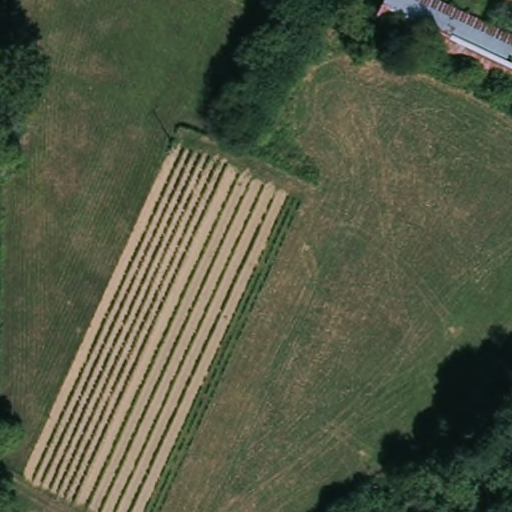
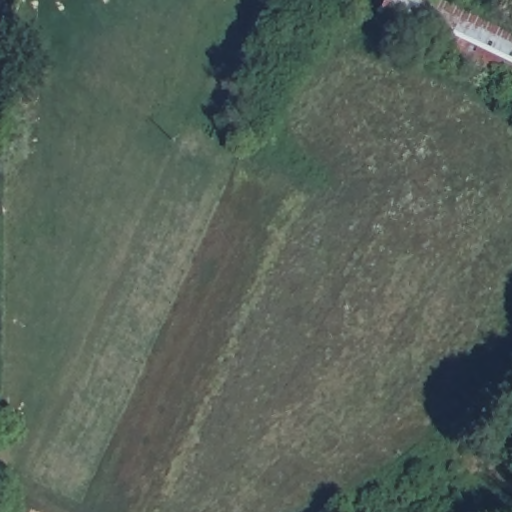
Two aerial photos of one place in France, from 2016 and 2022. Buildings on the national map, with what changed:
unchanged [(389,0),(444,0),(512,32),(512,83),(466,61),(379,22),(389,0)]

